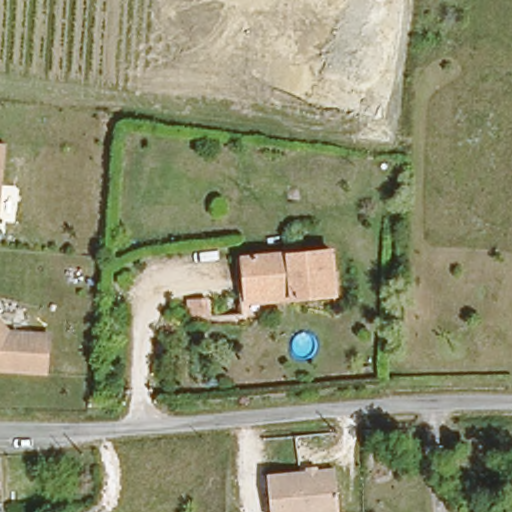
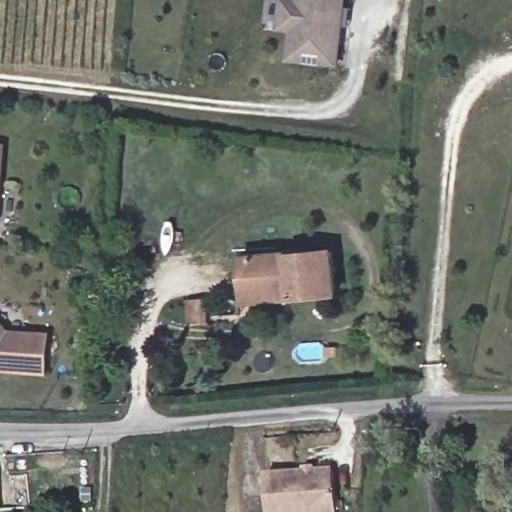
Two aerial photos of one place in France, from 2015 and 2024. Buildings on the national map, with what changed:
new [(280,0),(346,0),(338,68),(285,61),(289,31),(277,30),(280,0)]
unchanged [(0,146),(8,146),(0,219),(0,146)]
unchanged [(244,295),(242,255),(333,251),(335,299),(288,301),(245,304),(244,295)]
unchanged [(0,378),(0,331),(10,343),(50,345),(49,382),(0,378)]
unchanged [(341,512),(270,512),(266,473),(335,468),(341,512)]
unchanged [(0,497),(2,510),(0,510),(0,497)]

